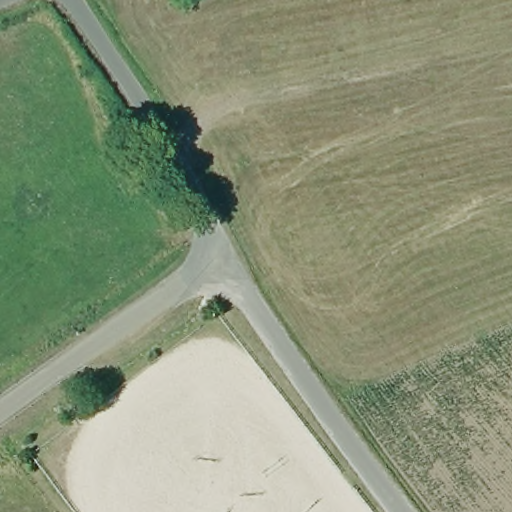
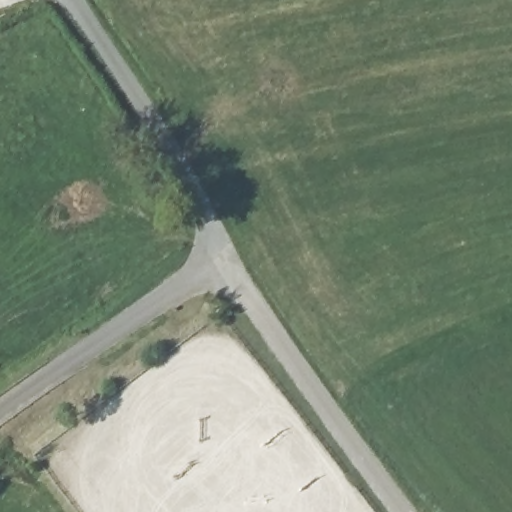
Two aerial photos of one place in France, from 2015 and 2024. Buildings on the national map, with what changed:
[]

